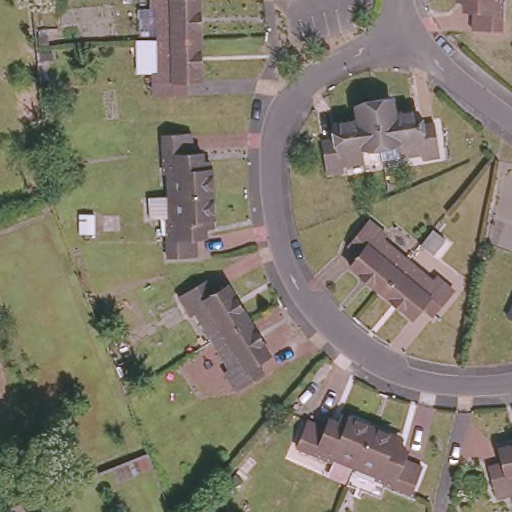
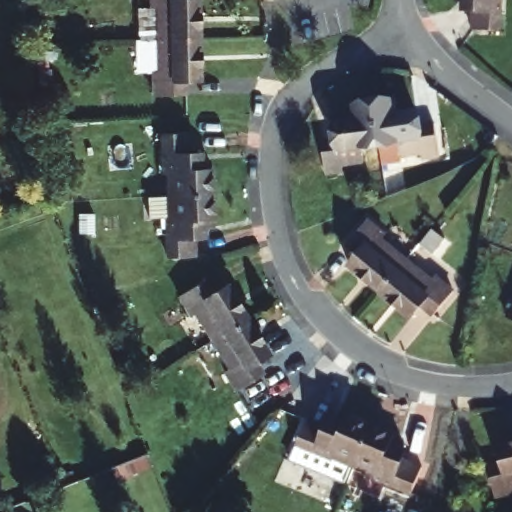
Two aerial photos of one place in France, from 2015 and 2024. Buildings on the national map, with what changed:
unchanged [(158,8),(151,8),(151,0),(184,0),(198,0),(198,39),(158,40),(158,8)]
unchanged [(466,23),(468,4),(459,3),(459,0),(496,0),(496,25),(466,23)]
unchanged [(199,79),(186,79),(186,95),(153,96),(153,71),(159,71),(158,40),(198,39),(199,79)]
unchanged [(373,91),(391,89),(393,103),(417,100),(418,115),(432,113),(438,148),(419,150),(419,143),(398,145),(396,131),(379,132),(373,91)]
unchanged [(363,150),(342,153),(343,160),(324,162),(321,128),(337,126),(336,111),(357,108),(356,94),(373,91),(379,132),(361,135),(363,150)]
unchanged [(168,168),(163,168),(163,128),(191,128),(192,149),(201,149),(202,158),(209,158),(209,166),(211,166),(211,189),(168,191),(168,168)]
unchanged [(204,221),(205,231),(196,231),(196,252),(166,253),(165,213),(169,213),(168,191),(211,189),(213,212),(211,212),(212,221),(204,221)]
unchanged [(346,265),(354,254),(342,244),(364,219),(381,235),(377,240),(402,261),(377,289),(376,291),(346,265)]
unchanged [(444,238),(432,254),(419,244),(423,240),(431,228),(444,238)]
unchanged [(377,289),(402,261),(426,280),(430,275),(449,291),(428,316),(415,306),(406,316),(376,291),(377,289)]
unchanged [(212,341),(196,314),(191,316),(178,295),(207,279),(215,293),(228,285),(248,319),(212,341)]
unchanged [(512,292),(512,323),(501,319),(512,292)]
unchanged [(268,354),(255,362),(263,376),(235,392),(223,371),(228,369),(212,341),(248,319),(268,354)]
unchanged [(371,425),(354,466),(334,458),(333,461),(296,446),(308,418),(326,426),(331,418),(339,421),(341,415),(349,417),(349,416),(371,425)]
unchanged [(393,434),(391,436),(399,439),(396,446),(405,450),(401,460),(421,469),(410,495),(374,479),(375,475),(354,466),(371,425),(393,434)]
unchanged [(485,467),(501,463),(498,448),(512,444),(512,494),(493,499),(485,467)]

